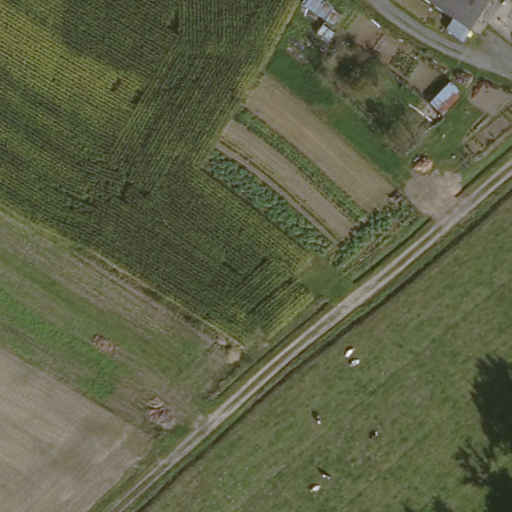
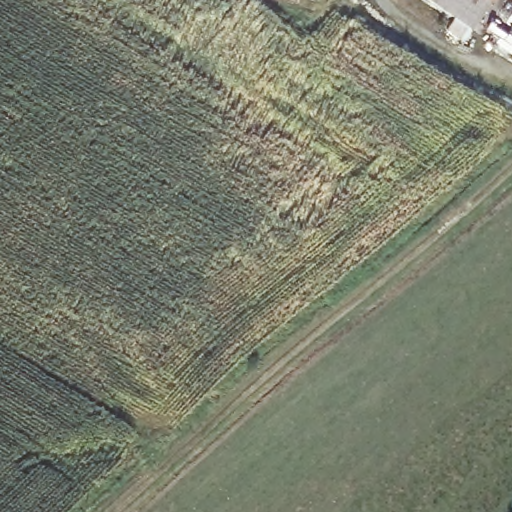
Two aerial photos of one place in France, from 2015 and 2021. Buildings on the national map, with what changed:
unchanged [(455,18),(430,0),(492,0),(462,42),(446,30),(455,18)]

